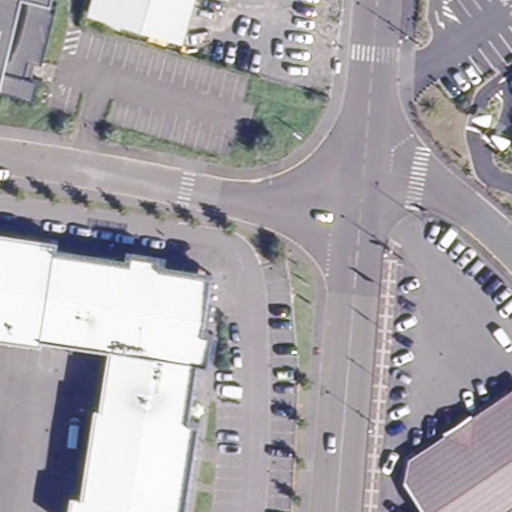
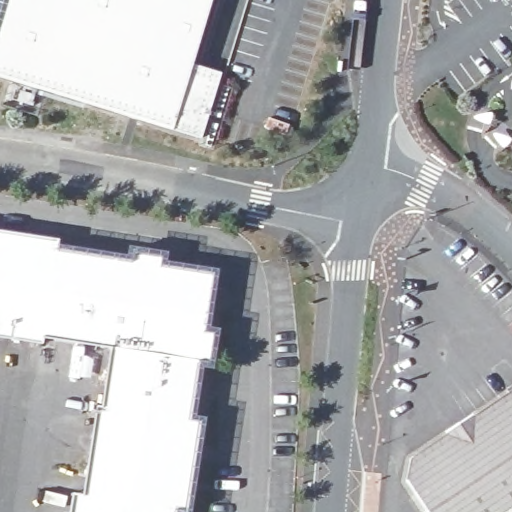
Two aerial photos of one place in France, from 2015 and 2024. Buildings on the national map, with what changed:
demolished [(56,8),(40,68),(32,66),(28,81),(36,83),(30,105),(0,97),(0,0),(54,0),(52,7),(56,8)]
new [(193,63),(221,73),(201,140),(0,78),(0,0),(213,0),(193,63)]
demolished [(92,0),(157,0),(150,34),(148,34),(96,21),(92,20),(86,18),(88,13),(92,0)]
demolished [(150,34),(157,0),(159,0),(184,8),(187,8),(182,28),(178,27),(174,42),(150,34)]
demolished [(184,8),(159,0),(186,0),(184,8)]
unchanged [(512,67),(512,110),(491,81),(512,67)]
unchanged [(21,232),(13,339),(0,336),(0,229),(21,232)]
unchanged [(54,246),(130,258),(132,249),(158,253),(163,254),(162,259),(161,265),(168,266),(211,271),(206,315),(205,330),(214,331),(211,364),(197,362),(187,426),(199,427),(192,471),(103,362),(106,345),(41,334),(39,343),(13,339),(21,232),(55,238),(54,246)]
unchanged [(80,493),(103,362),(192,471),(186,511),(174,509),(174,512),(68,512),(71,492),(80,493)]
unchanged [(399,462),(503,392),(512,395),(512,452),(422,512),(413,512),(394,484),(399,462)]
unchanged [(512,512),(422,512),(512,452),(512,512)]

